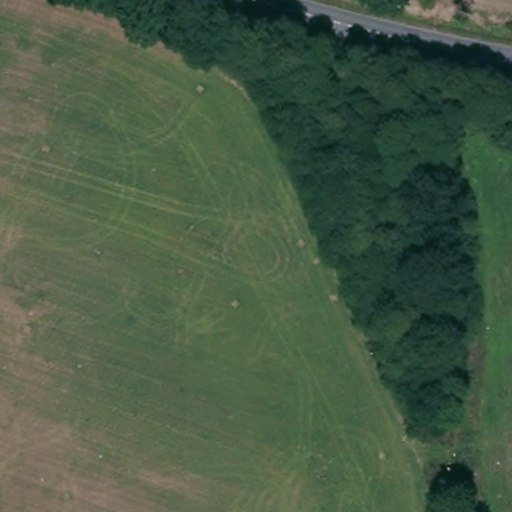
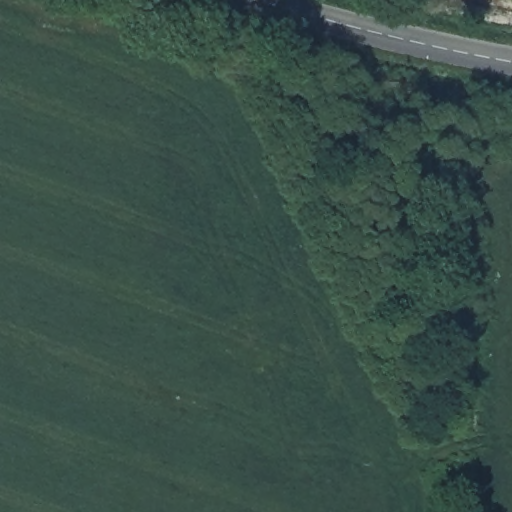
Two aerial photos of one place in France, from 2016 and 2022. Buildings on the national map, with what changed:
[]

